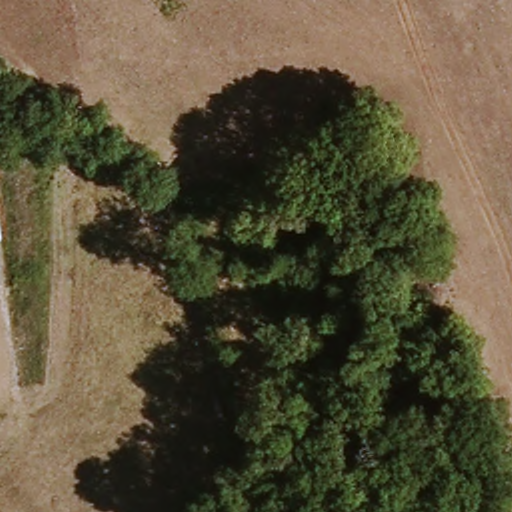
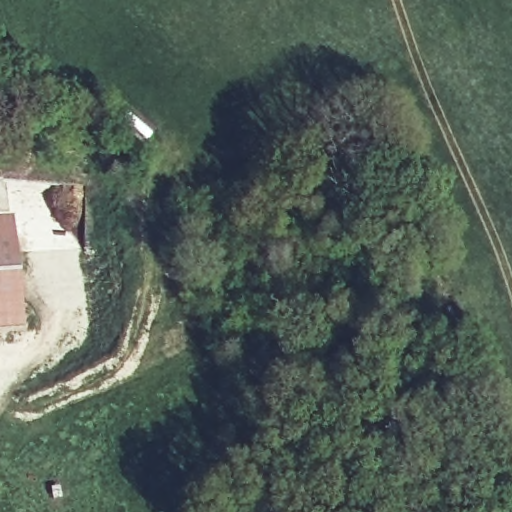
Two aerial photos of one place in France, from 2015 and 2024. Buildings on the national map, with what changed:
new [(24,328),(0,330),(0,218),(14,217),(24,328)]

